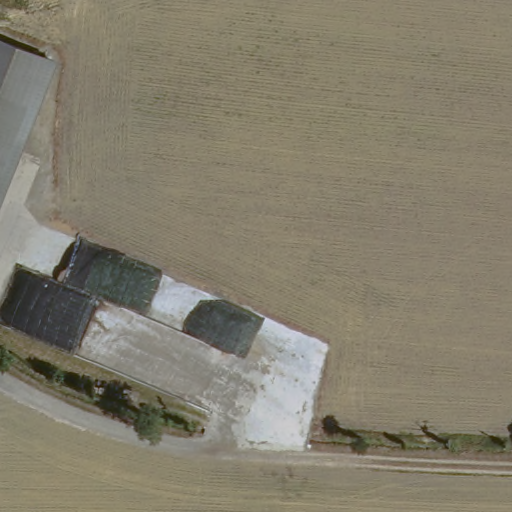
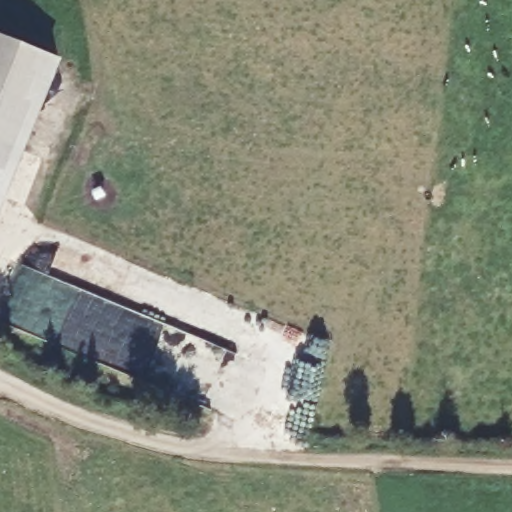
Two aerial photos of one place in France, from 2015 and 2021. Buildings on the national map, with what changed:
unchanged [(22,102),(0,94),(0,42),(40,57),(22,102)]
unchanged [(0,94),(22,102),(4,150),(0,149),(0,94)]
unchanged [(0,160),(0,149),(4,150),(0,160)]

